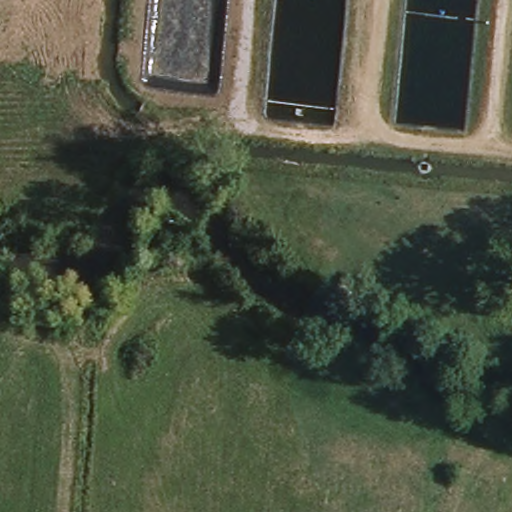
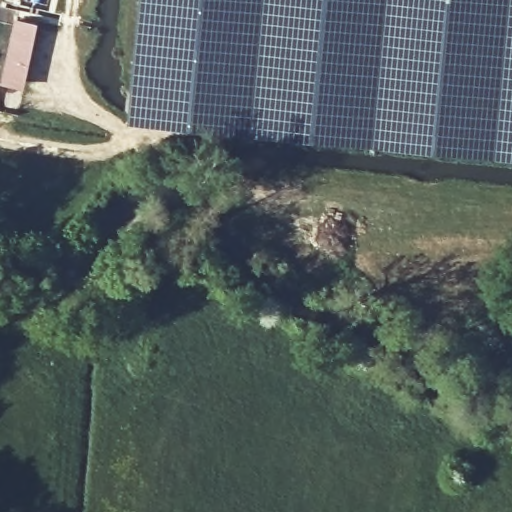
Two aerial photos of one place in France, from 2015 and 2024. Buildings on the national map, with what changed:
new [(139,0),(512,0),(512,160),(127,123),(139,0)]
new [(18,11),(28,13),(27,20),(40,22),(27,88),(1,82),(18,11)]

